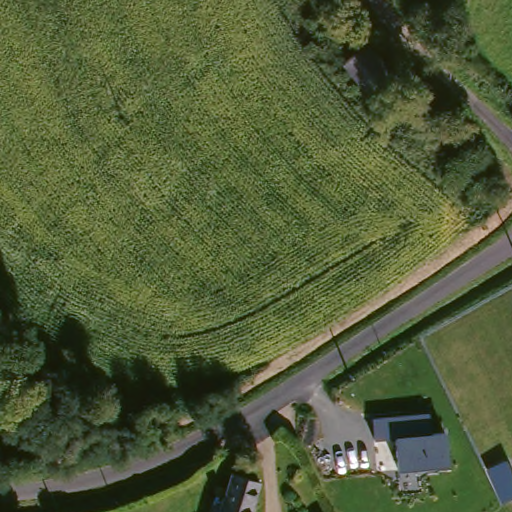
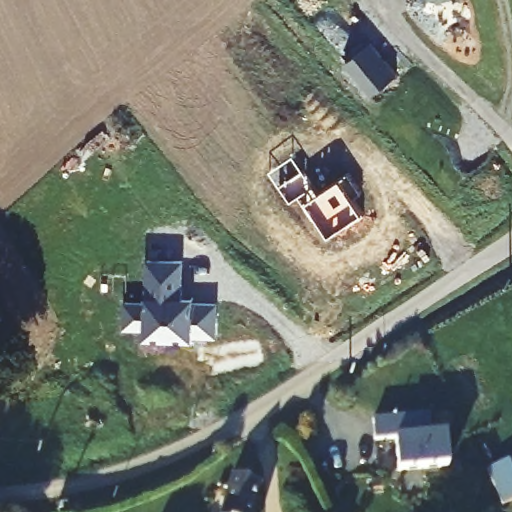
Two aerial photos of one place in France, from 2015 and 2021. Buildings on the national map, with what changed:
unchanged [(369,90),(342,60),(363,40),(390,70),(369,90)]
new [(317,184),(323,193),(349,176),(362,196),(354,202),(364,218),(347,229),(345,227),(330,238),(317,219),(313,222),(299,200),(290,205),(280,188),(270,173),(295,158),(304,173),(312,187),(317,184)]
new [(145,306),(144,263),(179,263),(179,299),(192,299),(191,304),(215,304),(215,336),(191,336),(191,346),(167,346),(167,339),(145,339),(145,331),(123,331),(123,306),(145,306)]
unchanged [(428,412),(431,433),(445,431),(450,464),(398,470),(396,438),(375,440),(373,418),(428,412)]
unchanged [(512,500),(503,504),(487,469),(508,459),(512,467),(512,500)]
unchanged [(259,481),(250,512),(219,512),(232,472),(259,481)]

